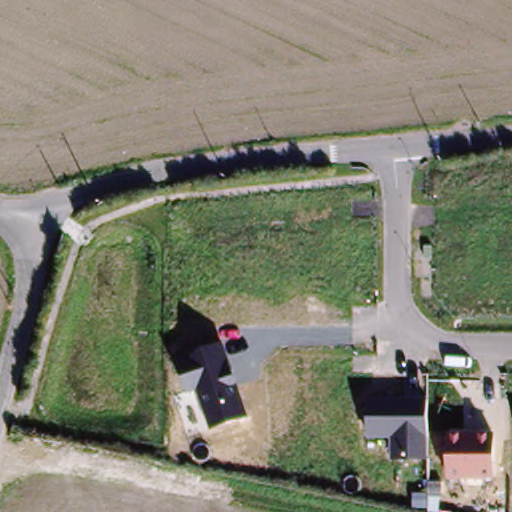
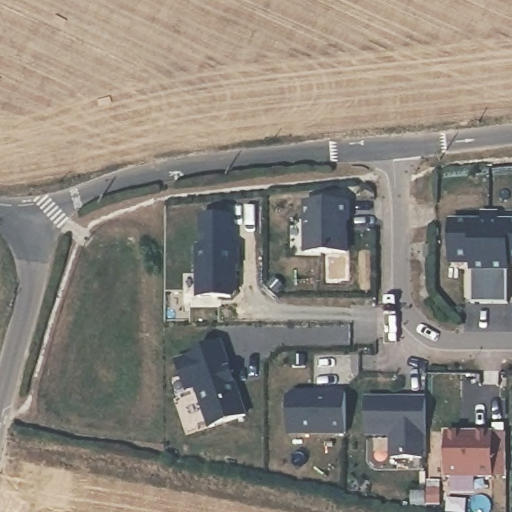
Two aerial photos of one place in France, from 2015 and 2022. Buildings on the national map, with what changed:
new [(306,202),(350,202),(350,220),(347,220),(347,253),(306,253),(306,202)]
new [(482,222),(482,214),(498,214),(498,222),(512,222),(512,260),(502,260),(502,267),(508,267),(508,305),(472,305),(472,267),(478,267),(478,259),(450,260),(450,222),(482,222)]
new [(197,250),(238,250),(238,268),(236,268),(235,295),(230,300),(197,300),(197,250)]
unchanged [(198,389),(187,392),(178,365),(193,360),(190,354),(224,344),(247,416),(210,427),(198,389)]
new [(289,401),(294,396),(305,396),(305,397),(315,397),(315,396),(346,396),(346,436),(289,436),(289,401)]
unchanged [(367,399),(425,398),(426,457),(391,458),(390,437),(367,438),(367,399)]
unchanged [(446,432),(493,432),(493,477),(447,478),(446,432)]

